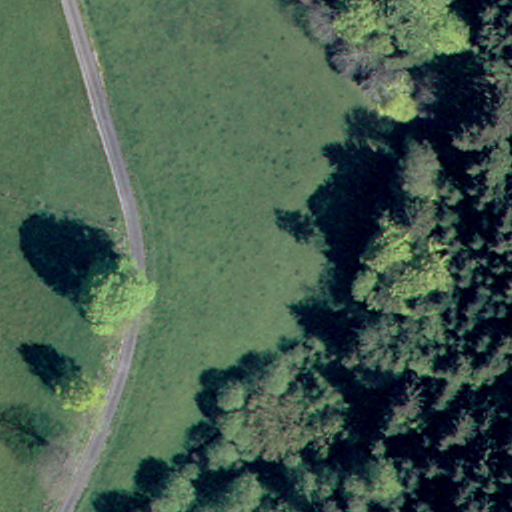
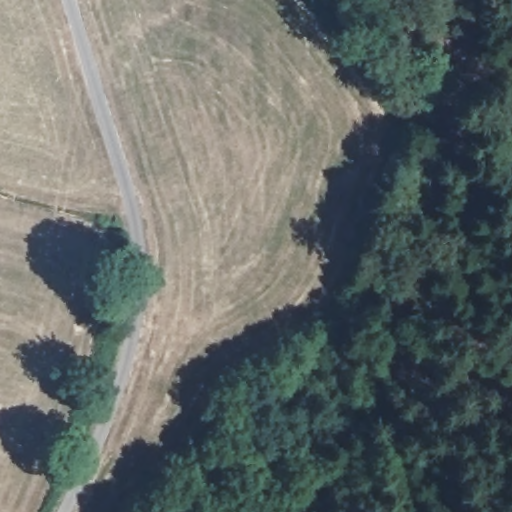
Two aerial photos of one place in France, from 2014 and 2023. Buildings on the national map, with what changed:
[]

